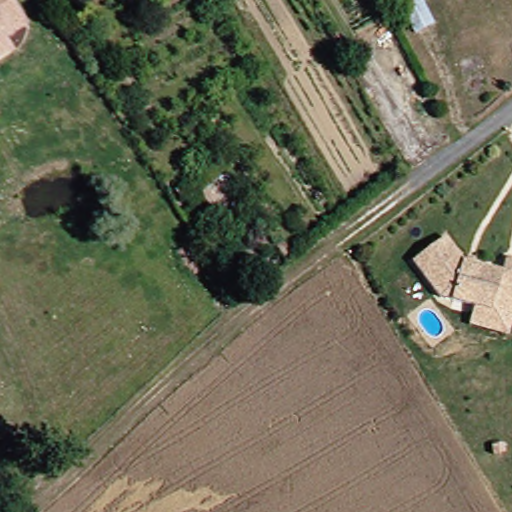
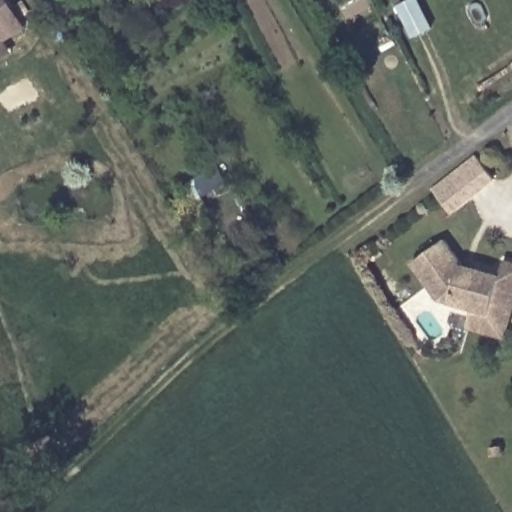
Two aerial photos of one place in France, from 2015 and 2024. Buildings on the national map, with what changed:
unchanged [(8,0),(28,33),(7,44),(13,54),(0,63),(0,0),(8,0)]
new [(452,216),(432,191),(476,157),(496,183),(452,216)]
unchanged [(475,315),(438,304),(411,269),(443,245),(463,270),(502,280),(505,266),(512,267),(512,324),(507,340),(470,332),(475,315)]

